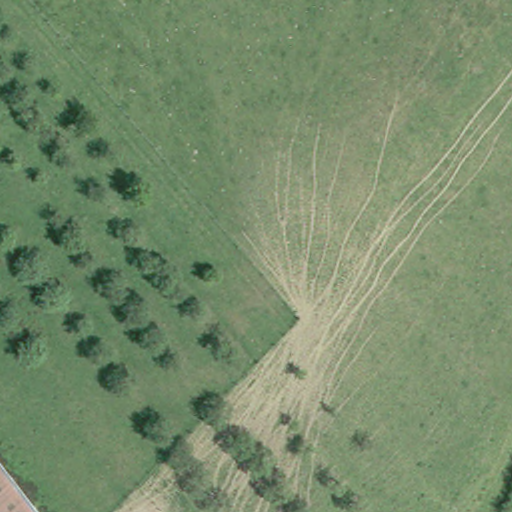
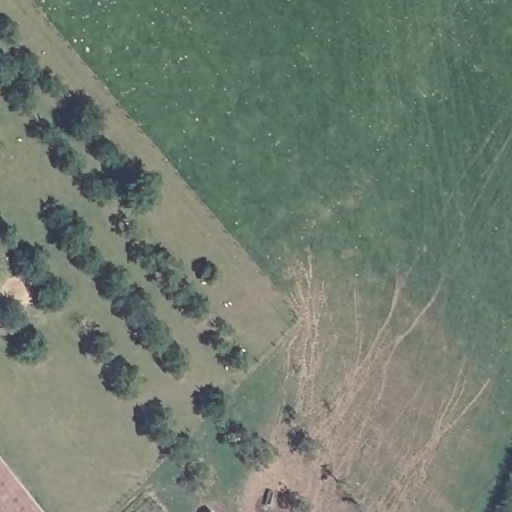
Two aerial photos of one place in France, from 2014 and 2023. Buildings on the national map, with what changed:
unchanged [(26,512),(0,512),(0,475),(26,512)]

